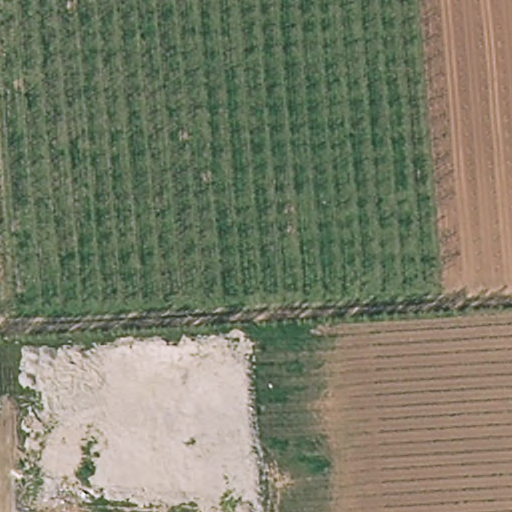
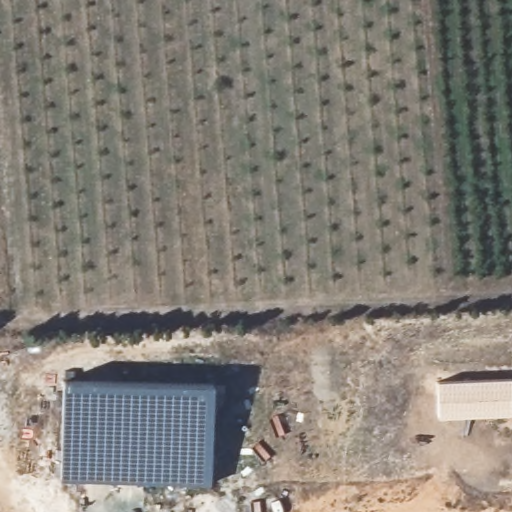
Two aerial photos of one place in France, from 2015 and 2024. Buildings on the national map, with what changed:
new [(512,416),(437,418),(436,381),(512,378),(512,416)]
new [(61,480),(63,380),(212,385),(210,483),(61,480)]

